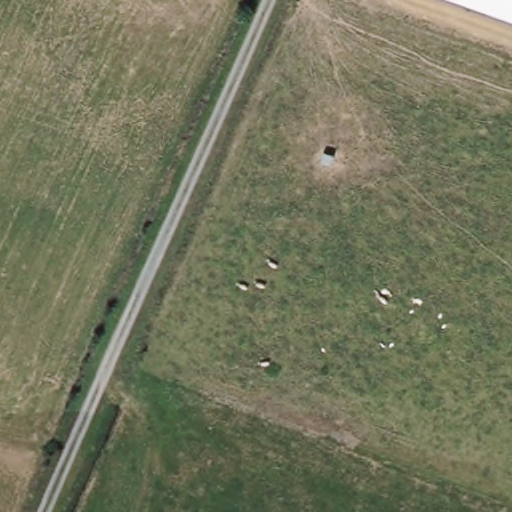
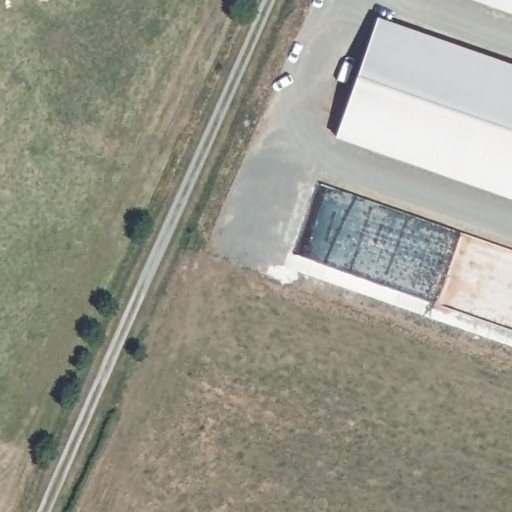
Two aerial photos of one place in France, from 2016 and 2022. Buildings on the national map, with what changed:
unchanged [(472,0),(512,0),(512,14),(472,0)]
new [(335,139),(378,20),(512,66),(512,201),(335,139)]

